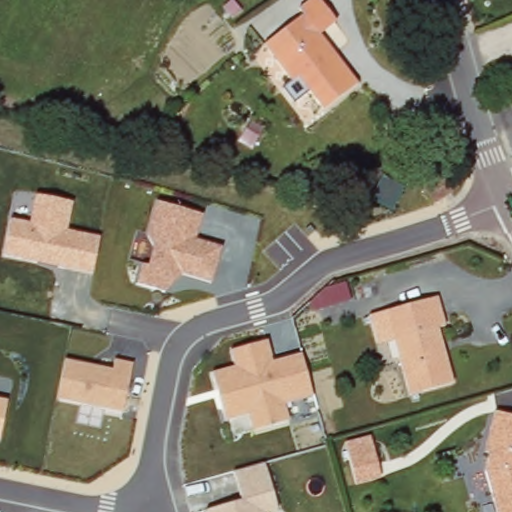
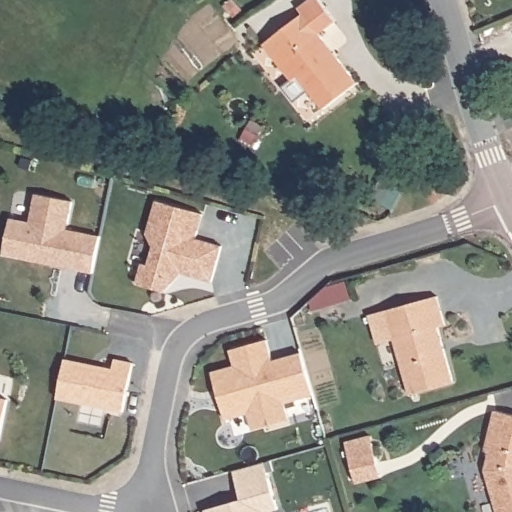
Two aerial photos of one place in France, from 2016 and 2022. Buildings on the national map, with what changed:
unchanged [(300,70),(291,78),(264,42),(302,11),(297,6),(305,0),(322,0),(336,19),(319,34),(350,75),(356,81),(346,89),(326,105),(300,70)]
unchanged [(394,185),(386,216),(361,211),(368,179),(394,185)]
unchanged [(73,201),(68,228),(101,237),(93,277),(2,256),(11,220),(30,225),(35,193),(73,201)]
unchanged [(141,262),(148,265),(153,247),(146,234),(156,200),(203,212),(196,240),(221,247),(212,282),(181,274),(167,293),(136,285),(141,262)]
unchanged [(435,295),(443,325),(436,326),(451,384),(407,395),(384,309),(435,295)]
unchanged [(212,371),(234,366),(230,350),(267,340),(273,362),(302,354),(313,395),(286,403),(290,420),(252,430),(248,413),(226,419),(212,371)]
unchanged [(65,361),(112,370),(115,360),(133,362),(124,412),(57,399),(65,361)]
unchanged [(7,399),(0,443),(0,398),(7,399)]
unchanged [(488,407),(512,413),(512,512),(495,512),(482,470),(490,443),(481,441),(488,407)]
unchanged [(384,478),(353,485),(343,441),(371,435),(384,478)]
unchanged [(242,501),(234,471),(266,462),(278,510),(273,512),(204,512),(242,501)]

